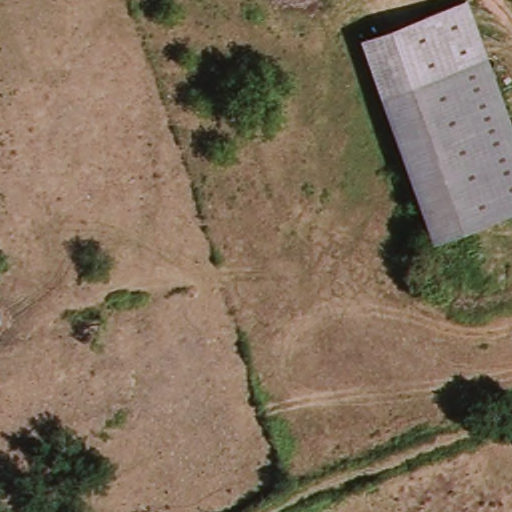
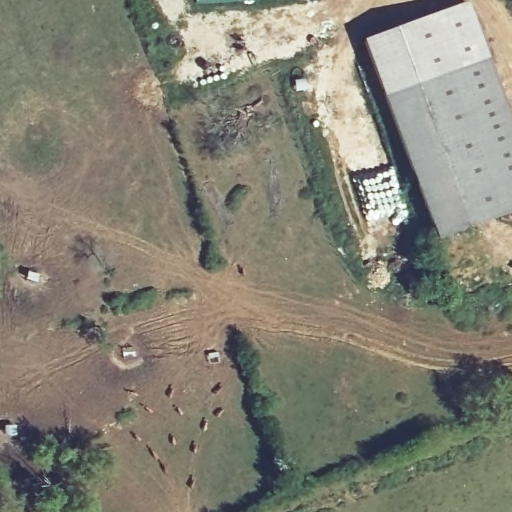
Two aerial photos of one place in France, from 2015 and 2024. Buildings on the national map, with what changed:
new [(195,5),(194,0),(279,0),(195,5)]
unchanged [(464,5),(512,146),(512,212),(429,241),(360,41),(464,5)]

